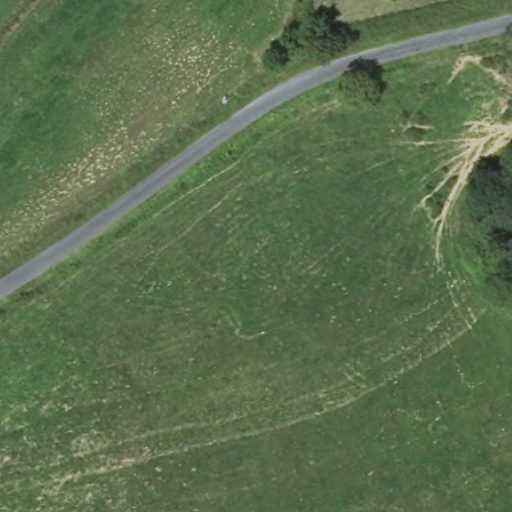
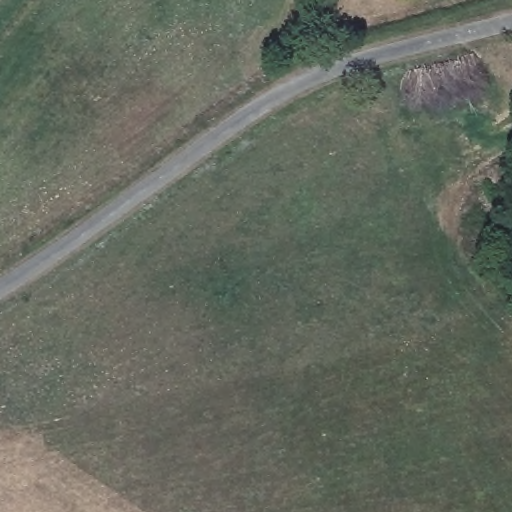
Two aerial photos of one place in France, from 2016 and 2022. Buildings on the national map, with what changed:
[]

